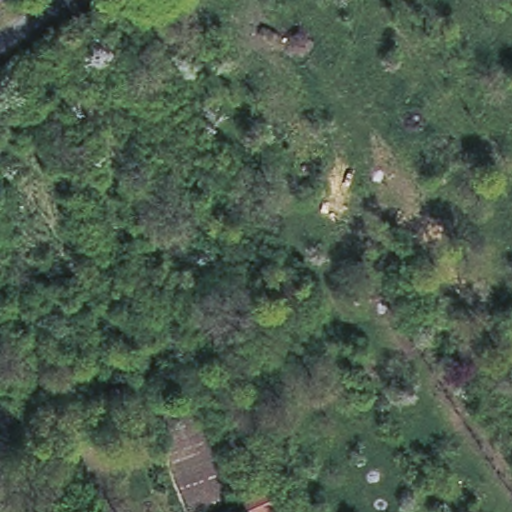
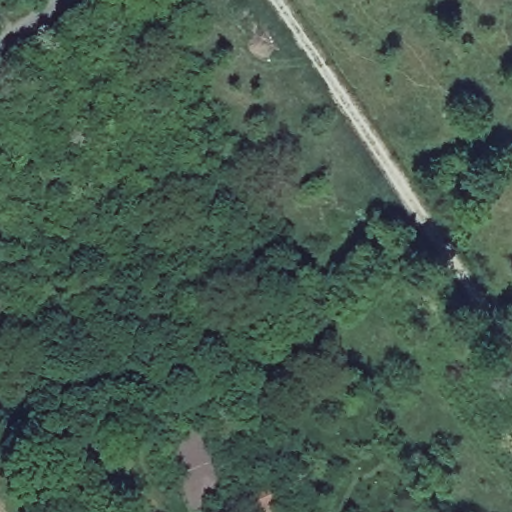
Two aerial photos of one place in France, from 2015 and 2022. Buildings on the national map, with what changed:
unchanged [(270,512),(243,512),(235,495),(257,485),(270,512)]

